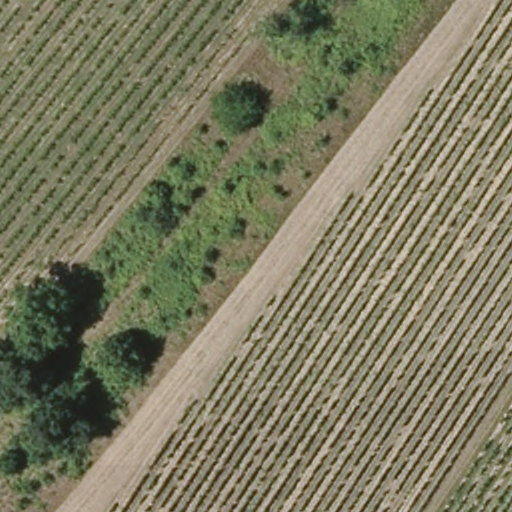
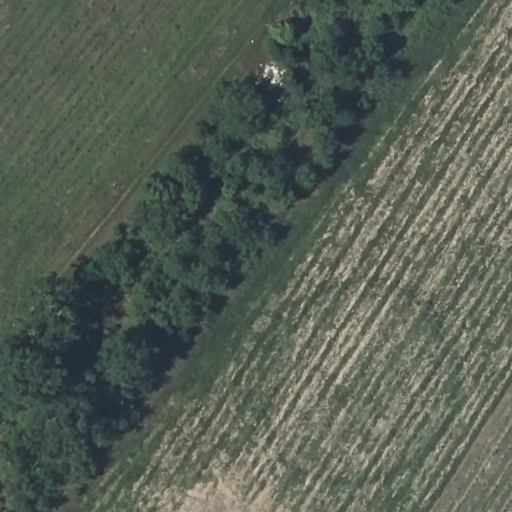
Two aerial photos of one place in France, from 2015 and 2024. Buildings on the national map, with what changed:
[]

